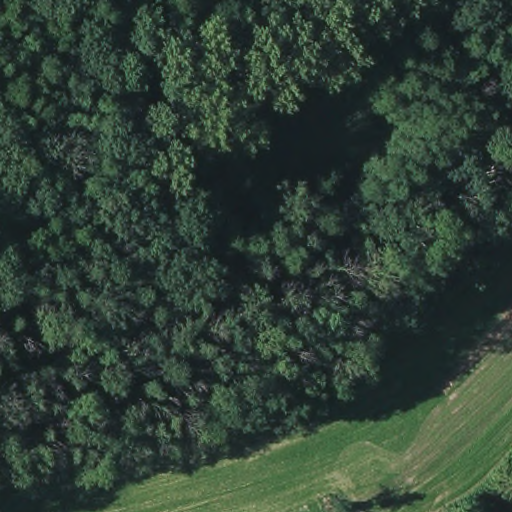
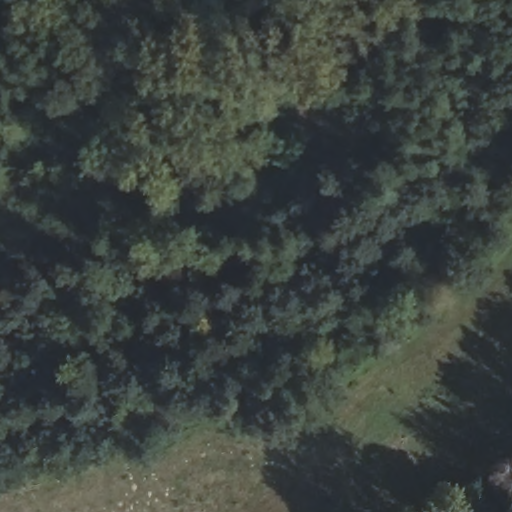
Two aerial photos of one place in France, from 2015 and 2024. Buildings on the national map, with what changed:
[]

